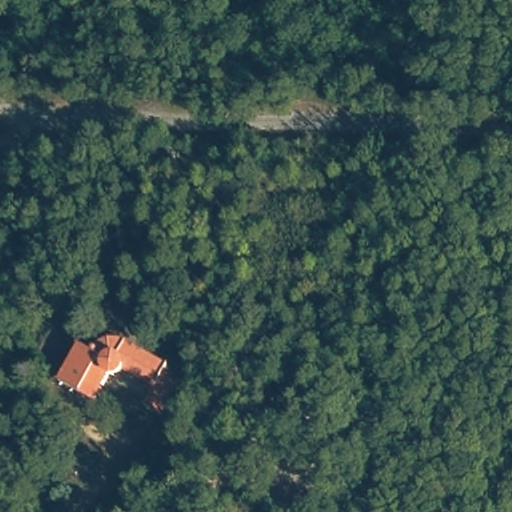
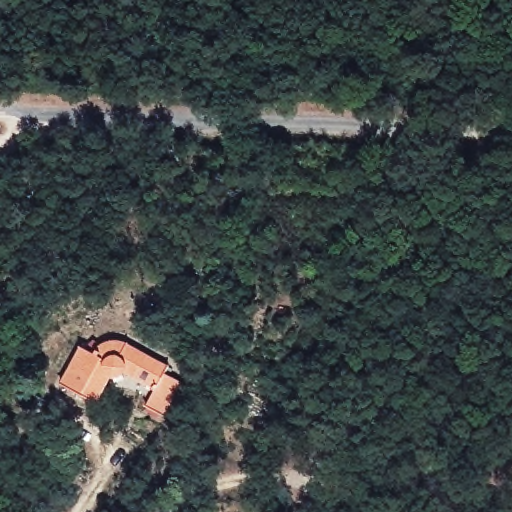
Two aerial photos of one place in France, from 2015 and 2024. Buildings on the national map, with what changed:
unchanged [(95,349),(96,348),(101,343),(104,341),(109,338),(114,337),(119,337),(123,338),(131,341),(171,364),(167,370),(182,378),(164,412),(148,403),(157,386),(126,369),(124,371),(119,372),(116,373),(111,372),(96,400),(62,380),(83,343),(95,349)]

